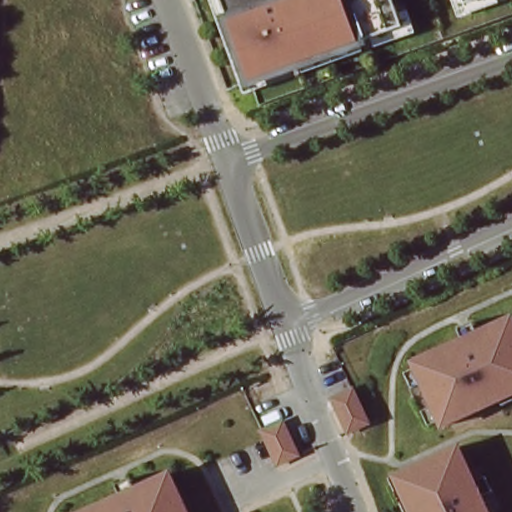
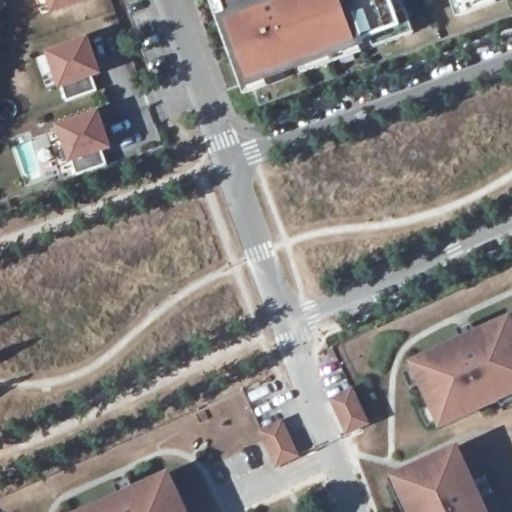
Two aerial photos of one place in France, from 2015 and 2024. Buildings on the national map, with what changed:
new [(49,0),(93,0),(53,14),(49,0)]
unchanged [(255,100),(246,77),(223,85),(192,0),(512,0),(512,7),(255,100)]
new [(63,89),(59,90),(47,52),(89,37),(103,75),(92,79),(95,92),(67,102),(63,89)]
new [(100,111),(112,150),(103,153),(106,165),(77,175),(74,162),(69,164),(57,125),(100,111)]
unchanged [(512,319),(512,389),(498,396),(501,401),(442,428),(412,363),(512,318),(512,319)]
unchanged [(353,390),(369,424),(348,433),(333,400),(353,390)]
unchanged [(282,423),(297,456),(277,466),(262,432),(282,423)]
unchanged [(416,512),(399,475),(459,447),(488,512),(416,512)]
unchanged [(69,512),(165,469),(185,512),(69,512)]

